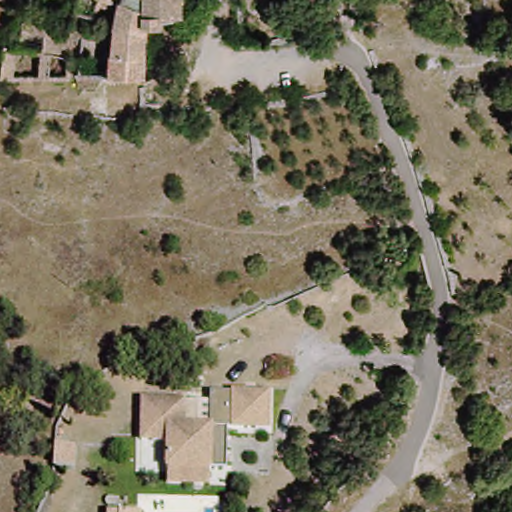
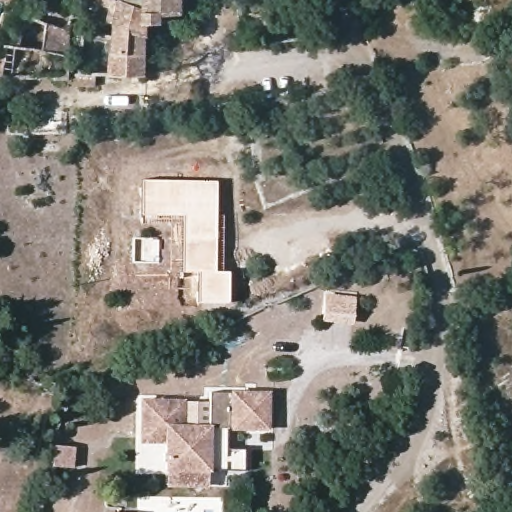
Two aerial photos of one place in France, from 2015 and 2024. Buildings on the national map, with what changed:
unchanged [(146,28),(142,85),(104,83),(108,18),(94,13),(100,4),(92,0),(182,0),(181,27),(146,28)]
new [(142,178),(217,180),(217,270),(229,270),(229,303),(197,303),(197,274),(181,274),(181,217),(142,217),(142,178)]
new [(134,245),(140,245),(140,238),(158,238),(158,262),(134,261),(134,245)]
unchanged [(235,430),(231,430),(230,471),(209,470),(209,485),(169,484),(171,443),(144,442),(145,400),(187,401),(187,426),(213,426),(214,392),(273,393),(272,431),(235,430)]
unchanged [(82,450),(78,473),(52,469),(57,447),(82,450)]

